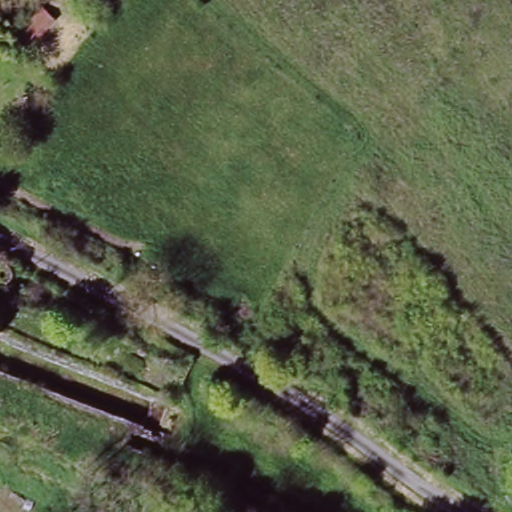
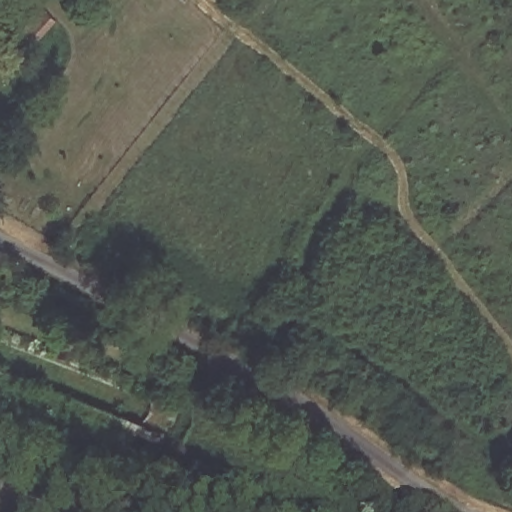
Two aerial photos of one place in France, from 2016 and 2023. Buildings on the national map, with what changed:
unchanged [(12,3),(9,0),(15,0),(12,3)]
unchanged [(63,18),(34,48),(20,34),(49,4),(63,18)]

